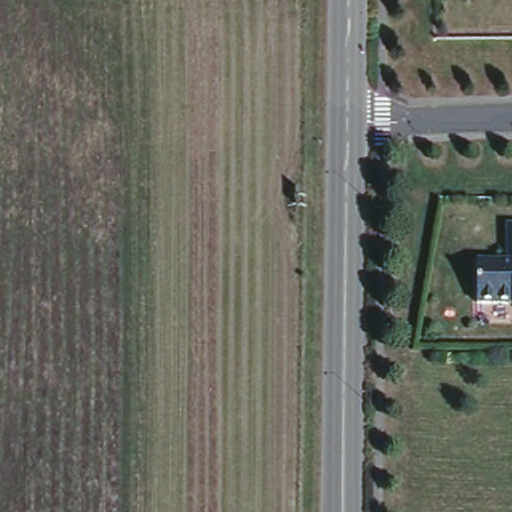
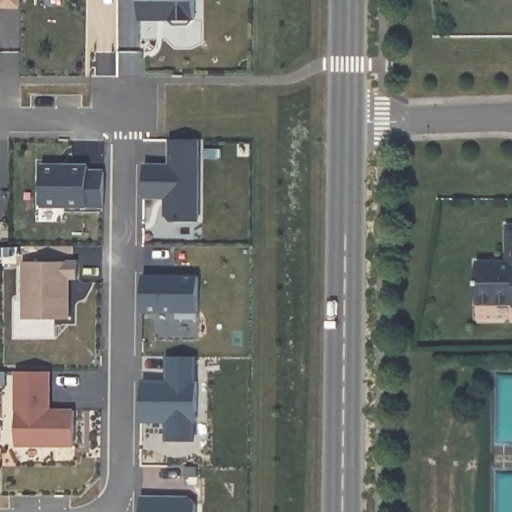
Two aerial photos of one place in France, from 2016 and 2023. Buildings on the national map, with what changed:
new [(2,4),(2,0),(22,0),(22,4),(2,4)]
new [(195,0),(195,14),(190,19),(176,19),(170,14),(141,14),(142,0),(195,0)]
new [(147,162),(173,162),(173,136),(201,136),(200,218),(174,218),(169,213),(169,194),(147,194),(147,162)]
new [(42,160),(88,161),(88,166),(104,166),(104,202),(42,201),(42,160)]
unchanged [(512,226),(512,304),(477,304),(475,262),(507,262),(506,226),(512,226)]
new [(23,257),(76,257),(76,273),(68,273),(68,314),(23,314),(23,257)]
new [(143,276),(198,277),(197,319),(176,319),(176,312),(142,311),(143,276)]
new [(166,378),(167,356),(197,357),(195,439),(164,439),(165,421),(143,421),(143,380),(166,378)]
new [(17,367),(51,367),(51,387),(47,387),(47,406),(75,406),(75,441),(17,441),(17,367)]
new [(188,497),(194,502),(195,512),(140,512),(139,496),(188,497)]

